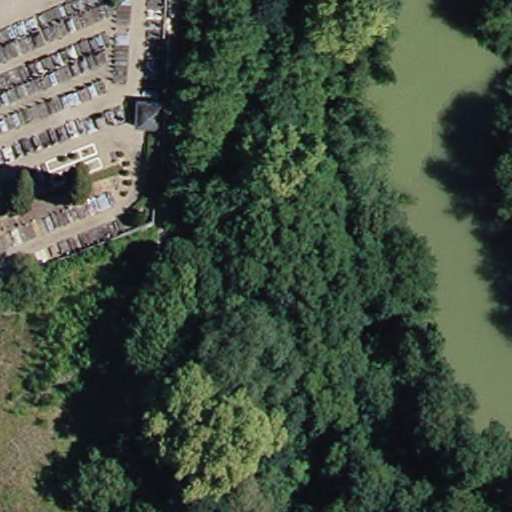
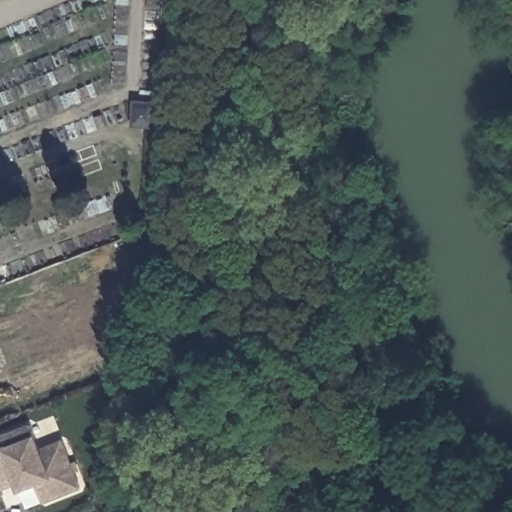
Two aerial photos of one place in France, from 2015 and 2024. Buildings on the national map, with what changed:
unchanged [(160,125),(134,125),(136,100),(161,101),(160,125)]
new [(38,434),(41,445),(64,438),(84,488),(44,503),(39,485),(20,490),(18,485),(0,491),(0,436),(33,425),(38,434)]

